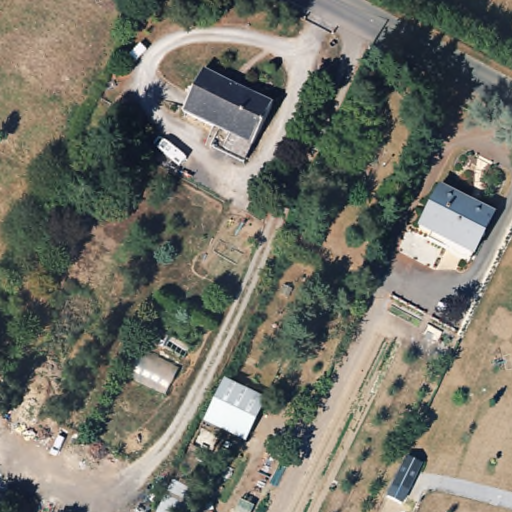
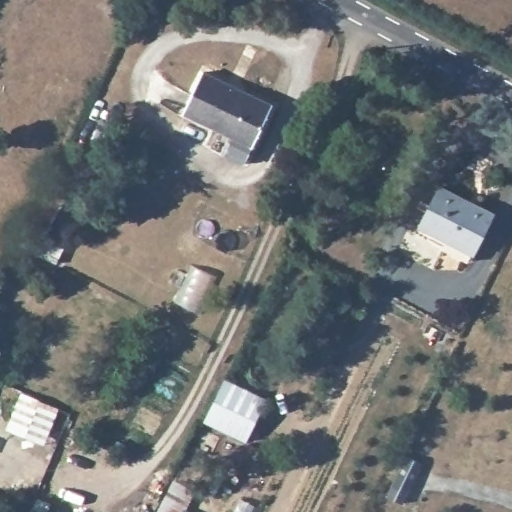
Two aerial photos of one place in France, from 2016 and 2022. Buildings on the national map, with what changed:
unchanged [(270,104),(252,141),(184,108),(202,70),(270,104)]
unchanged [(494,213),(476,250),(423,223),(440,186),(494,213)]
unchanged [(266,402),(244,443),(208,425),(229,382),(266,402)]
unchanged [(192,490),(182,512),(161,512),(175,482),(192,490)]
unchanged [(29,512),(0,512),(0,498),(30,509),(29,512)]

